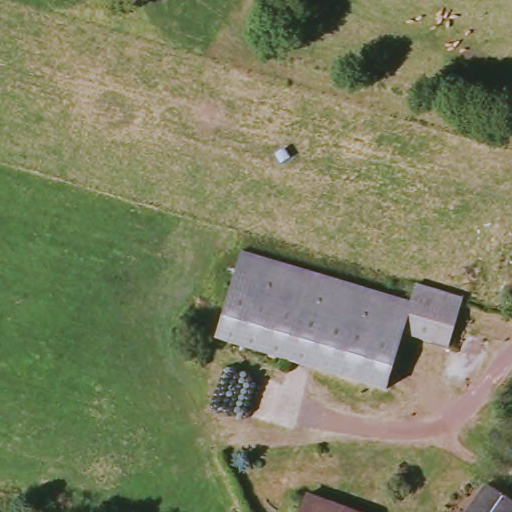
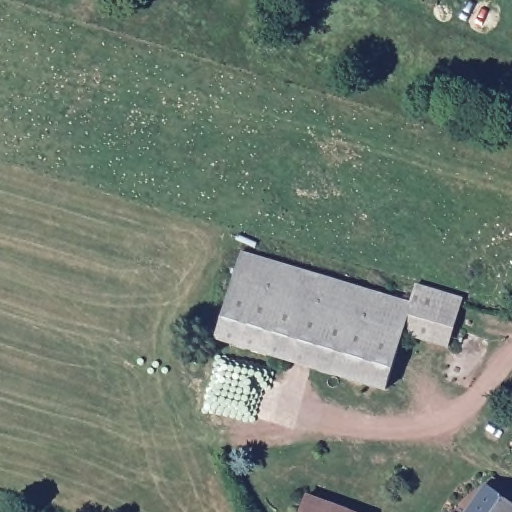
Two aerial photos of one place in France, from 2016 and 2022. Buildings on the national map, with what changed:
unchanged [(243,256),(411,305),(418,283),(462,296),(447,345),(405,332),(388,388),(219,338),(243,256)]
unchanged [(512,491),(512,512),(465,512),(490,476),(512,491)]
unchanged [(347,512),(303,512),(309,496),(347,512)]

